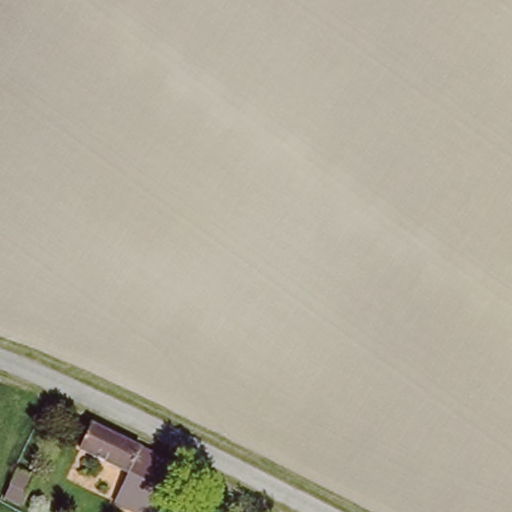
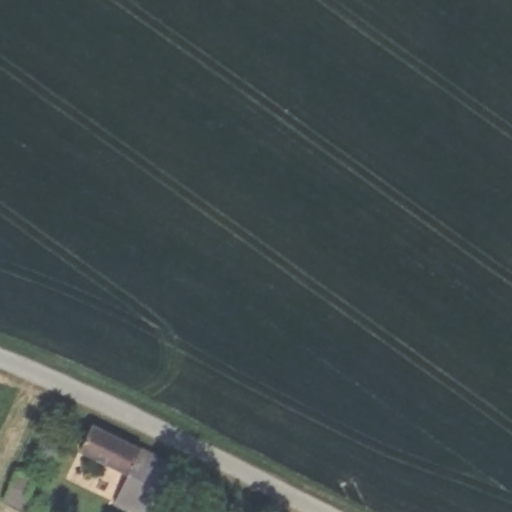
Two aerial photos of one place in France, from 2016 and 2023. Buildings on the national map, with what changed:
unchanged [(196,486),(178,477),(161,512),(142,512),(117,500),(131,472),(81,447),(93,424),(183,468),(200,477),(196,486)]
unchanged [(33,479),(21,506),(9,501),(21,474),(33,479)]

